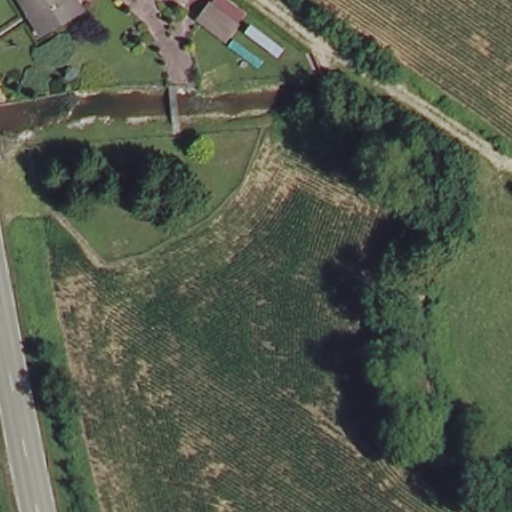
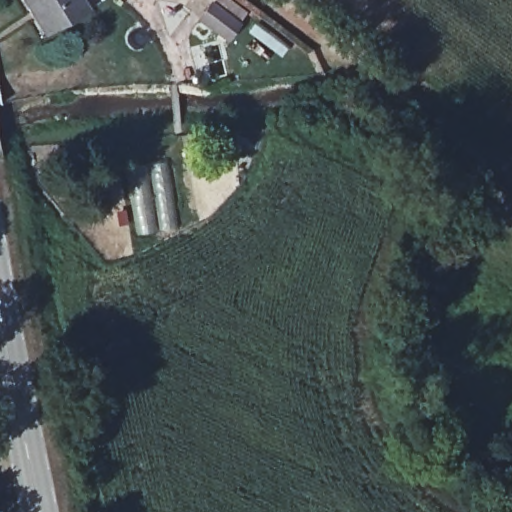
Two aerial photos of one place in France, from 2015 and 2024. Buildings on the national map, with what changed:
unchanged [(82,7),(47,29),(29,0),(78,0),(82,7)]
unchanged [(228,21),(217,36),(192,16),(205,0),(228,21)]

